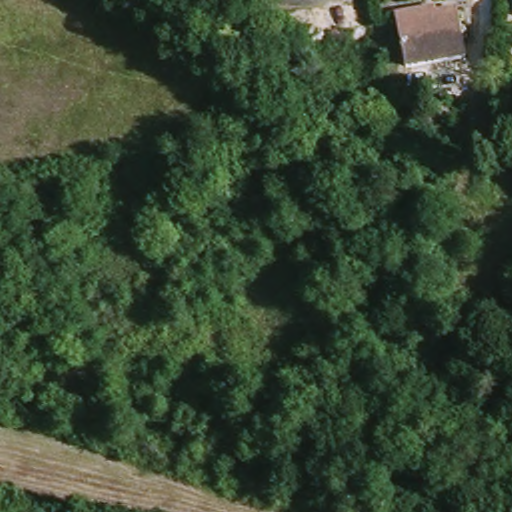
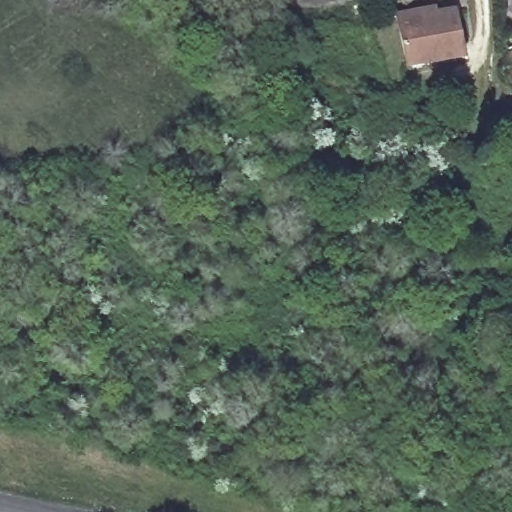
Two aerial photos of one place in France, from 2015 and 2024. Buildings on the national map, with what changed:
unchanged [(479,49),(419,65),(406,15),(421,9),(442,4),(445,10),(467,4),(479,49)]

